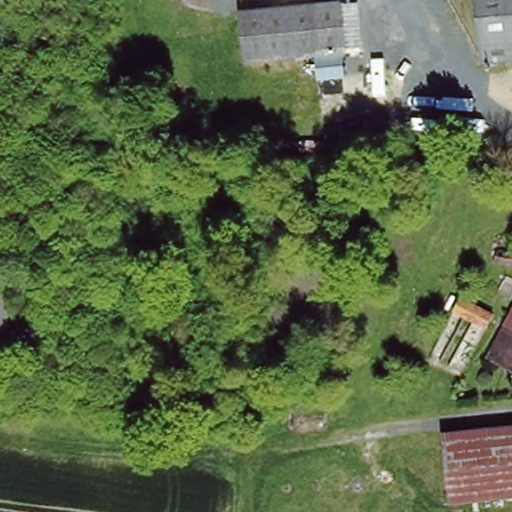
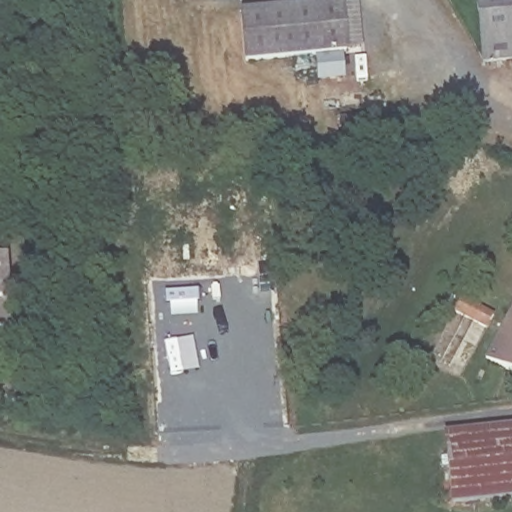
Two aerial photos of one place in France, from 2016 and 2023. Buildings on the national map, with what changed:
unchanged [(480,67),(473,0),(512,0),(512,65),(480,67)]
unchanged [(350,6),(355,51),(340,53),(340,55),(240,64),(235,14),(335,5),(335,8),(350,6)]
unchanged [(512,252),(512,267),(495,260),(501,247),(512,252)]
unchanged [(13,367),(0,368),(0,255),(3,254),(13,367)]
unchanged [(495,314),(489,327),(457,310),(463,298),(495,314)]
unchanged [(490,361),(512,323),(512,373),(490,361)]
unchanged [(451,507),(445,444),(445,437),(512,430),(512,501),(451,507)]

